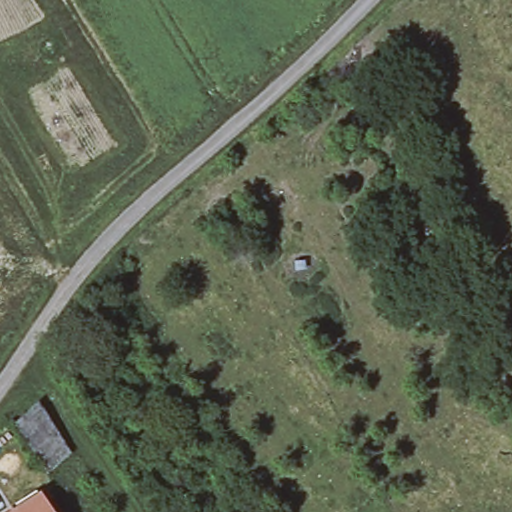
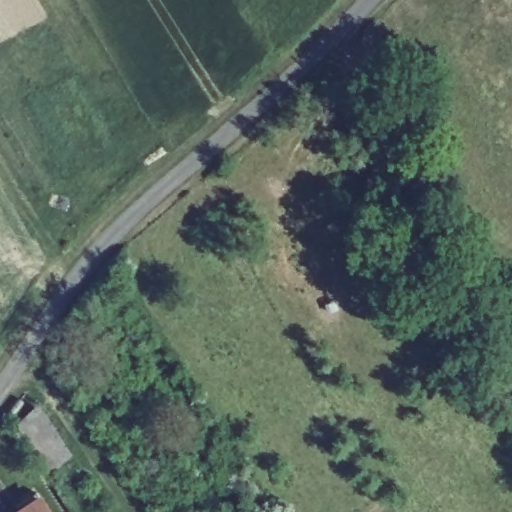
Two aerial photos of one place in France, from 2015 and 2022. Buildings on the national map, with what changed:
unchanged [(67,457),(42,476),(14,426),(39,402),(67,457)]
unchanged [(15,502),(35,489),(51,512),(13,512),(19,508),(15,502)]

